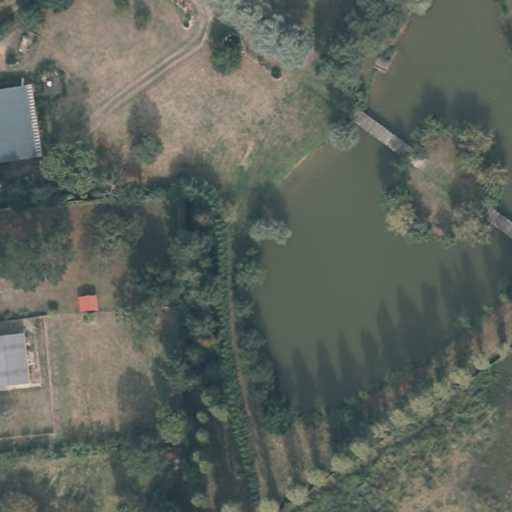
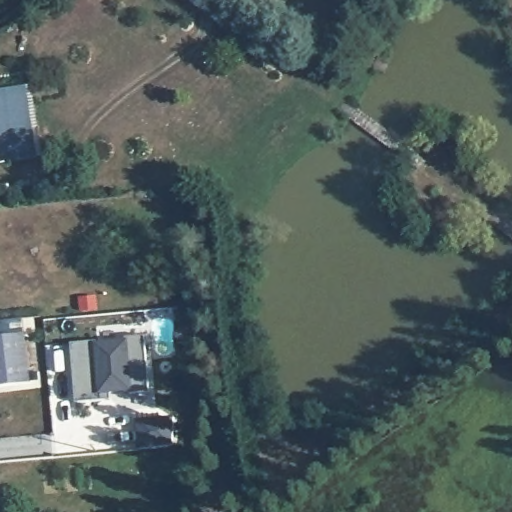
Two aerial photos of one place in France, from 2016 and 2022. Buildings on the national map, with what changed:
unchanged [(0,93),(22,91),(26,134),(1,136),(0,119),(0,93)]
unchanged [(0,158),(0,119),(1,136),(4,158),(0,158)]
unchanged [(29,386),(0,388),(0,337),(26,336),(29,386)]
new [(102,398),(102,401),(76,403),(71,344),(97,341),(98,345),(126,343),(125,338),(145,336),(150,393),(130,394),(130,391),(111,393),(111,398),(102,398)]
new [(175,420),(172,448),(140,451),(137,424),(175,420)]

